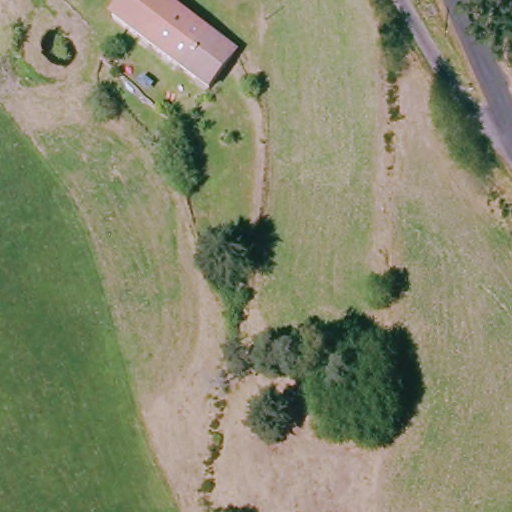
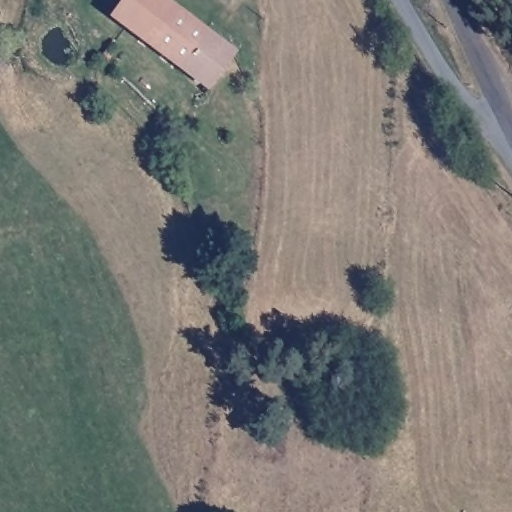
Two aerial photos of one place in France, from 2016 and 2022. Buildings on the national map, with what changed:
unchanged [(205,82),(105,17),(117,0),(160,0),(228,46),(205,82)]

